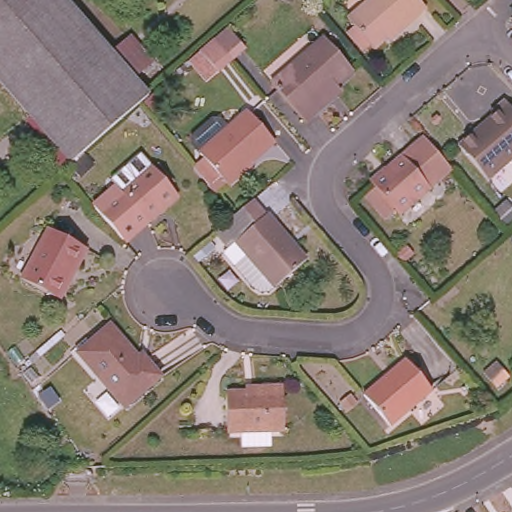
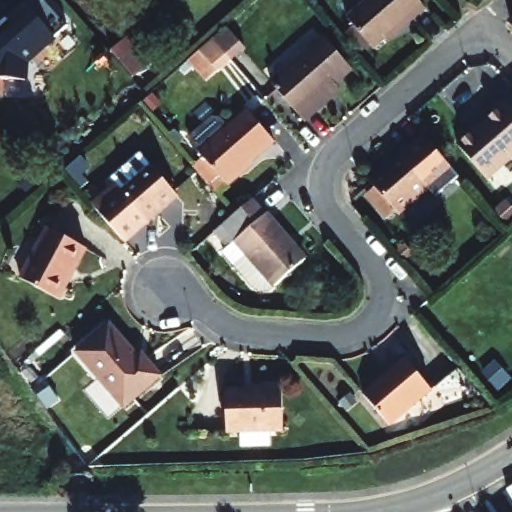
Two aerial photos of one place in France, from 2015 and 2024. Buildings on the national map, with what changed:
new [(9,19),(2,10),(14,0),(46,0),(68,25),(55,37),(57,40),(29,64),(28,81),(0,80),(0,27),(9,19)]
demolished [(148,95),(140,103),(115,125),(74,163),(0,80),(0,0),(64,0),(148,95)]
unchanged [(429,2),(414,15),(412,13),(376,43),(349,13),(363,0),(426,0),(429,2)]
unchanged [(202,43),(214,33),(227,22),(244,43),(232,54),(220,64),(202,43)]
unchanged [(512,24),(512,34),(507,29),(512,24)]
unchanged [(353,66),(326,88),(331,94),(305,117),(271,79),(324,34),(353,66)]
demolished [(154,61),(135,77),(112,51),(130,36),(154,61)]
unchanged [(487,179),(457,145),(492,114),(490,112),(503,100),(512,110),(512,158),(487,179)]
unchanged [(195,160),(206,151),(203,147),(250,105),(277,136),(219,188),(212,180),(198,164),(195,160)]
unchanged [(396,160),(417,141),(443,170),(421,190),(396,160)]
unchanged [(188,185),(158,210),(156,208),(134,228),(106,196),(128,176),(132,180),(162,154),(188,185)]
unchanged [(359,197),(367,189),(365,187),(396,160),(421,190),(391,217),(388,212),(380,220),(359,197)]
unchanged [(320,261),(291,287),(289,285),(284,290),(275,289),(266,286),(236,252),(242,247),(228,232),(248,215),(263,201),(277,217),(279,215),(320,261)]
unchanged [(90,246),(80,266),(76,265),(61,295),(27,278),(53,227),(90,246)]
unchanged [(140,355),(143,352),(160,371),(123,401),(76,346),(107,318),(140,355)]
unchanged [(429,390),(388,427),(362,398),(403,361),(429,390)]
unchanged [(289,420),(274,421),(275,437),(246,438),(245,422),(233,423),(231,385),(268,384),(268,377),(287,376),(289,420)]
unchanged [(75,467),(83,467),(83,475),(75,474),(75,467)]

